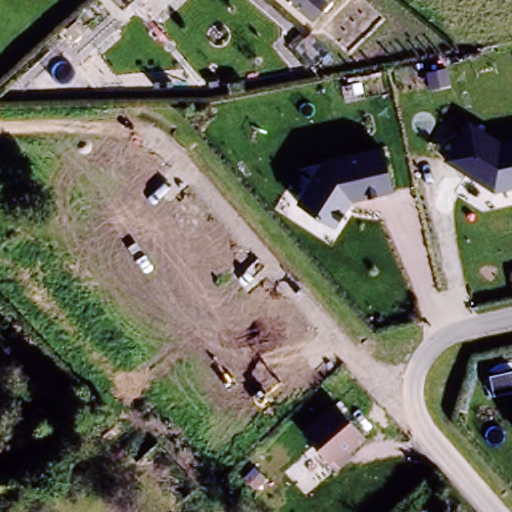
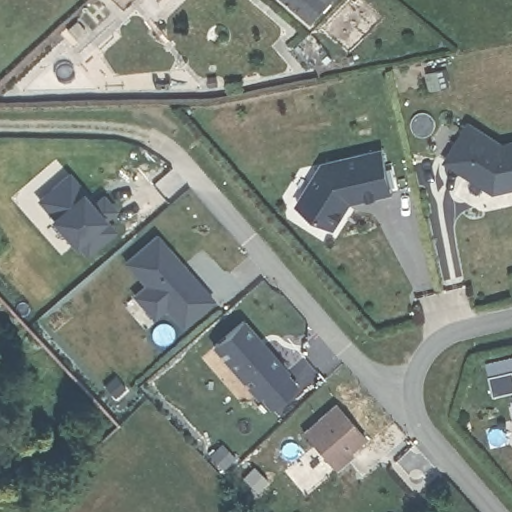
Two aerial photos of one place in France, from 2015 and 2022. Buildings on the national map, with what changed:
unchanged [(287,0),(334,0),(311,20),(287,0)]
unchanged [(442,164),(467,123),(503,144),(512,142),(512,191),(493,195),(442,164)]
unchanged [(295,207),(322,163),(383,150),(392,195),(351,205),(336,230),(295,207)]
new [(78,242),(73,246),(51,216),(37,199),(70,172),(95,201),(104,194),(117,211),(106,219),(116,231),(86,255),(78,242)]
new [(181,328),(165,309),(153,318),(132,294),(144,285),(124,261),(157,233),(214,300),(181,328)]
new [(270,410),(258,395),(255,398),(212,346),(245,320),(290,370),(286,373),(298,385),(270,410)]
unchanged [(353,458),(337,472),(333,468),(303,435),(321,420),(335,407),(368,438),(350,453),(353,458)]

